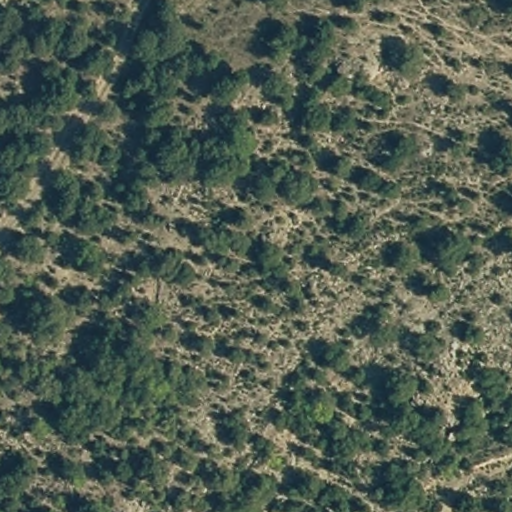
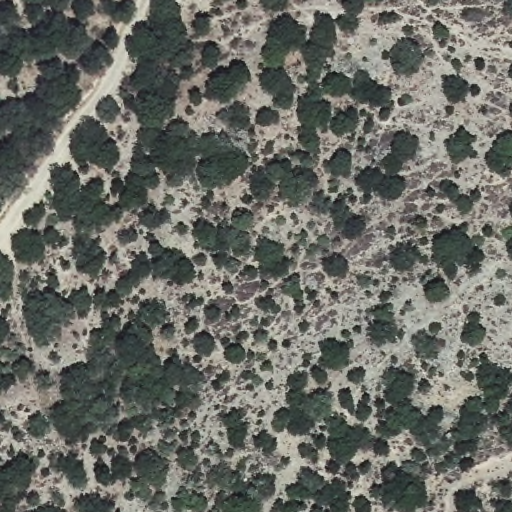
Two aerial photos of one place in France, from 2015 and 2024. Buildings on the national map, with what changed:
[]

